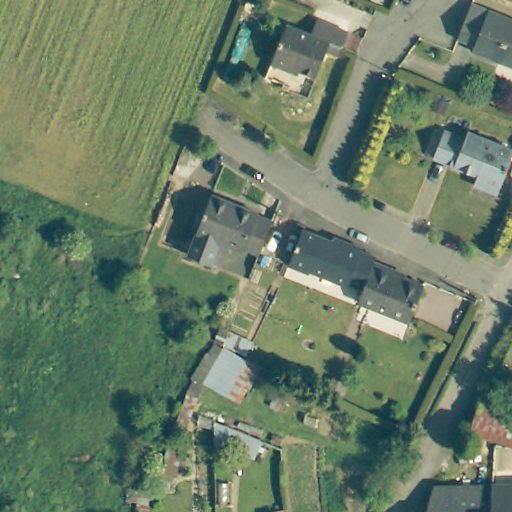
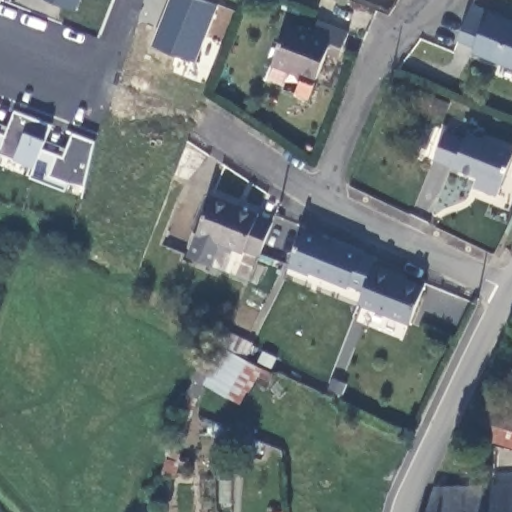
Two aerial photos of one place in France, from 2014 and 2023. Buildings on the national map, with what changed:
new [(58,0),(79,0),(76,7),(58,0)]
new [(207,0),(216,4),(195,59),(154,43),(171,0),(207,0)]
unchanged [(472,10),(512,25),(512,73),(471,57),(473,52),(457,46),(472,10)]
unchanged [(333,57),(320,52),(310,78),(274,64),(288,30),(309,39),(315,24),(342,35),(333,57)]
new [(15,108),(52,122),(43,146),(64,154),(73,131),(95,140),(85,184),(69,181),(67,188),(32,175),(36,165),(0,151),(0,152),(0,130),(6,132),(15,108)]
unchanged [(470,137),(512,152),(512,159),(498,197),(475,188),(480,175),(436,159),(445,135),(468,143),(470,137)]
unchanged [(249,270),(191,249),(213,189),(273,211),(249,270)]
unchanged [(303,232),(365,253),(363,258),(428,284),(412,328),(355,308),(358,295),(286,269),(303,232)]
unchanged [(229,332),(253,344),(244,362),(262,371),(241,406),(204,387),(229,332)]
unchanged [(495,445),(471,439),(479,406),(482,399),(512,405),(512,449),(495,445)]
unchanged [(492,492),(512,491),(512,512),(493,512),(492,492)]
unchanged [(434,493),(492,492),(493,512),(427,512),(434,493)]
unchanged [(269,511),(287,509),(287,512),(269,512),(269,511)]

